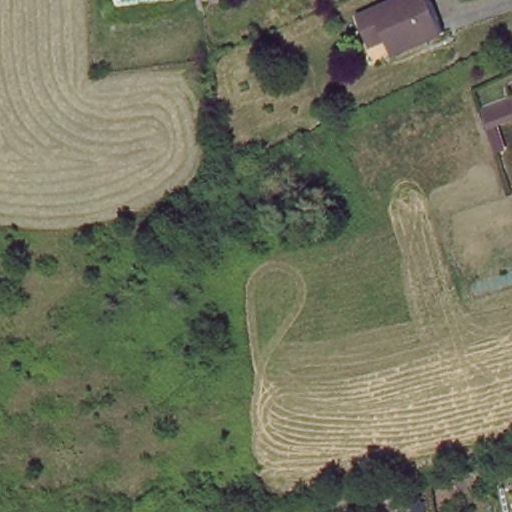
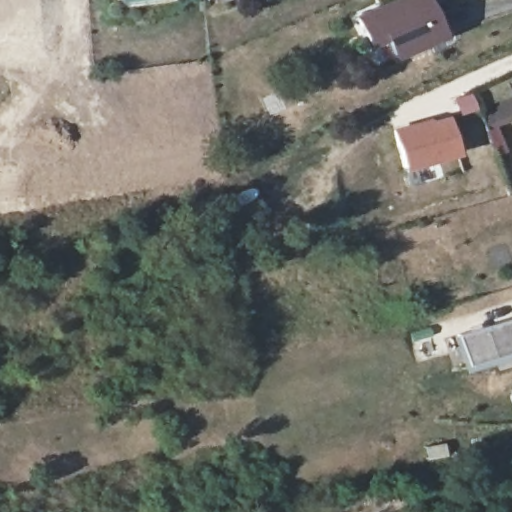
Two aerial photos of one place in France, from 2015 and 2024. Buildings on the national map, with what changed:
unchanged [(369,31),(361,12),(389,0),(438,0),(449,27),(399,48),(395,39),(376,47),(369,31)]
unchanged [(497,135),(484,106),(512,94),(512,130),(497,135)]
new [(449,113),(459,153),(404,169),(392,130),(449,113)]
new [(470,369),(461,338),(512,322),(512,357),(470,369)]

